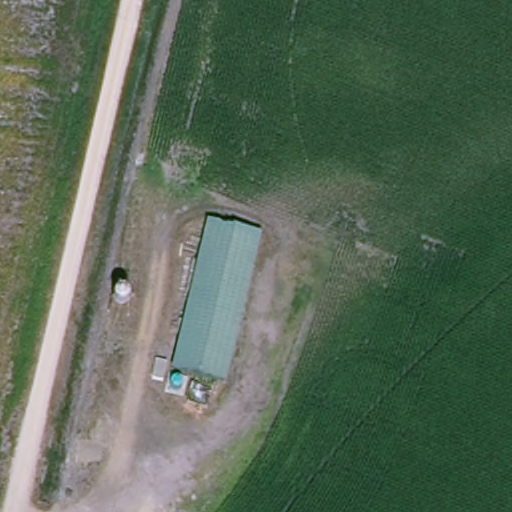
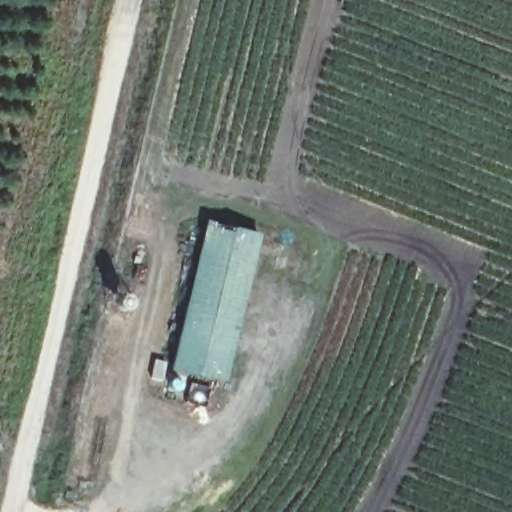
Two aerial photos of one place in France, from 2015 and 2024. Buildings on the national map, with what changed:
unchanged [(254,236),(226,378),(171,368),(203,225),(254,236)]

